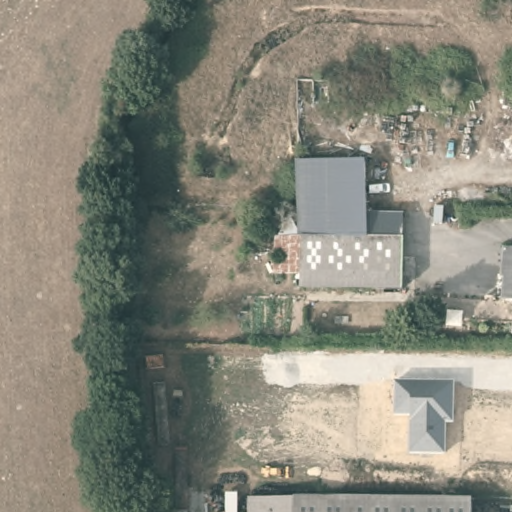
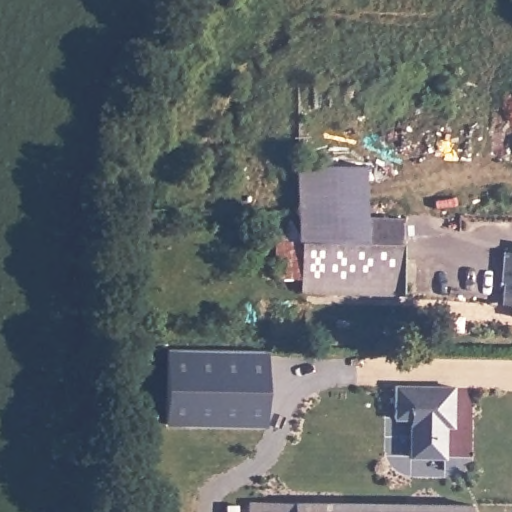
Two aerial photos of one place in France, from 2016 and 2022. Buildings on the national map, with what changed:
unchanged [(299,204),(301,160),(365,162),(363,206),(363,214),(399,216),(398,241),(297,236),(299,204)]
unchanged [(398,241),(397,291),(295,285),(297,236),(398,241)]
unchanged [(502,297),(502,275),(498,275),(498,247),(512,247),(512,297),(502,297)]
new [(264,426),(162,425),(162,348),(266,350),(264,426)]
unchanged [(453,427),(446,427),(446,458),(407,457),(410,421),(395,420),(396,383),(455,385),(453,427)]
unchanged [(467,502),(467,512),(250,512),(250,497),(467,502)]

